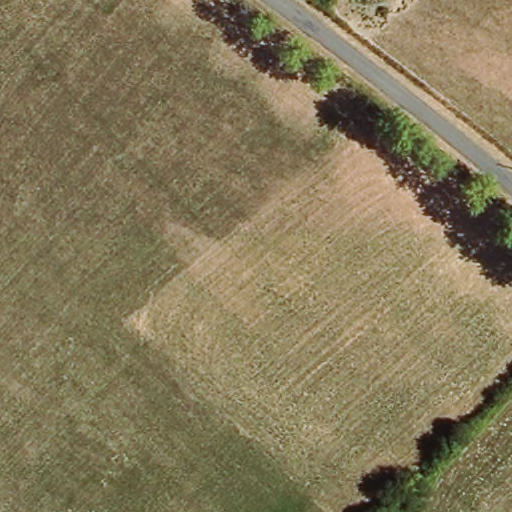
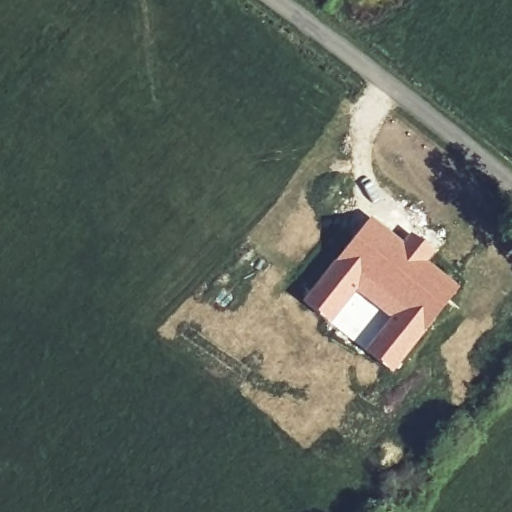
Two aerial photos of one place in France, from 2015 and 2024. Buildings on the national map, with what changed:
new [(422,262),(456,289),(398,362),(374,343),(406,304),(367,273),(335,314),(312,294),(369,220),(403,247),(410,236),(431,253),(422,262)]

